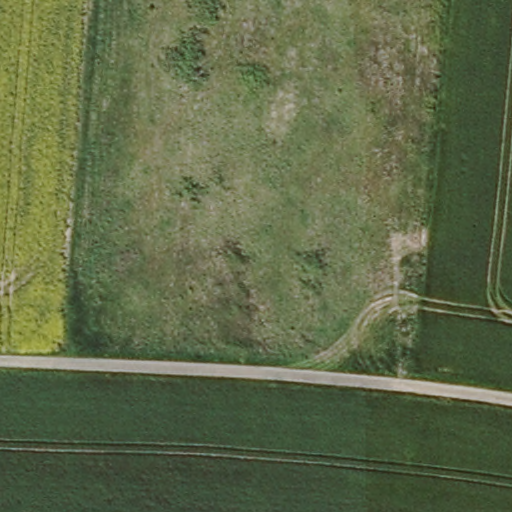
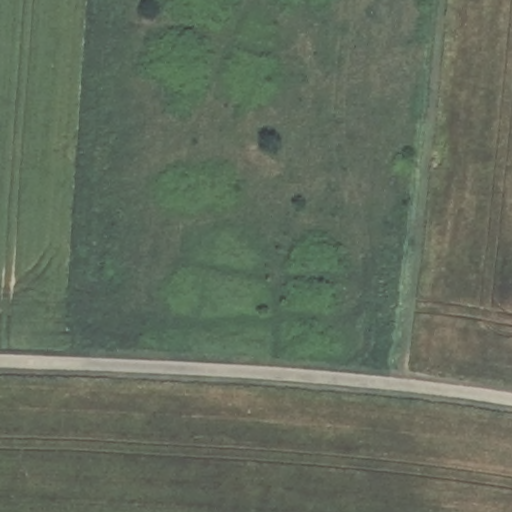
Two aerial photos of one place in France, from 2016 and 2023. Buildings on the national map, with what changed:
[]

